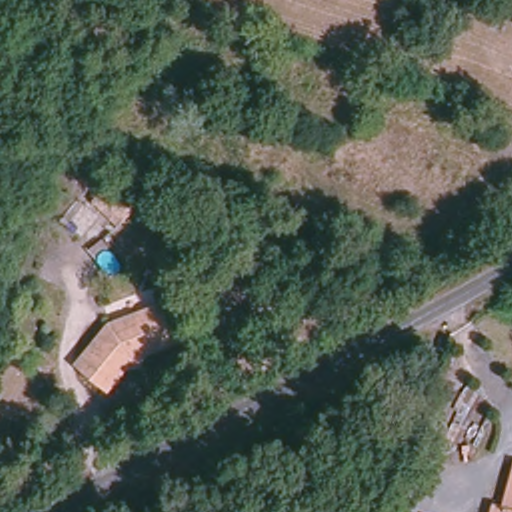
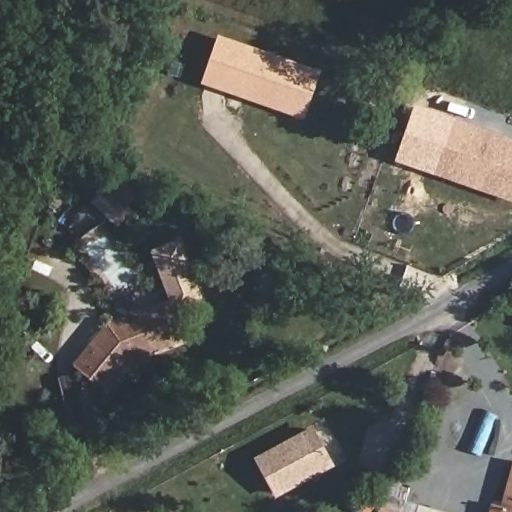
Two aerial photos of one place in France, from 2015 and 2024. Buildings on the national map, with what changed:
new [(322,70),(305,119),(202,83),(219,34),(322,70)]
new [(512,201),(394,162),(414,106),(512,138),(512,201)]
demolished [(413,208),(415,198),(428,201),(426,213),(413,208)]
unchanged [(168,305),(179,342),(131,357),(105,388),(75,363),(108,324),(168,305)]
new [(319,428),(337,461),(280,492),(262,459),(319,428)]
unchanged [(503,506),(512,478),(512,512),(490,512),(492,504),(503,506)]
unchanged [(393,512),(373,512),(374,508),(393,512)]

